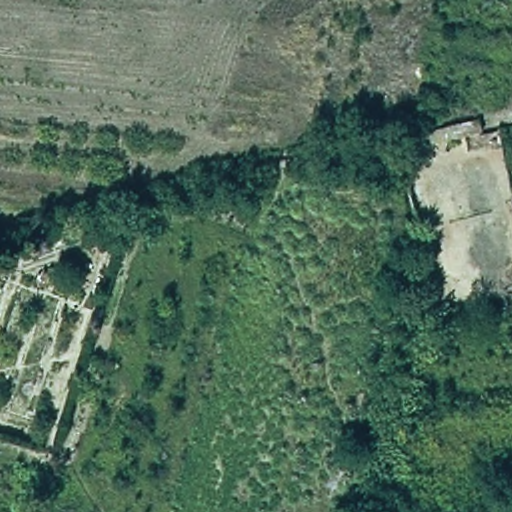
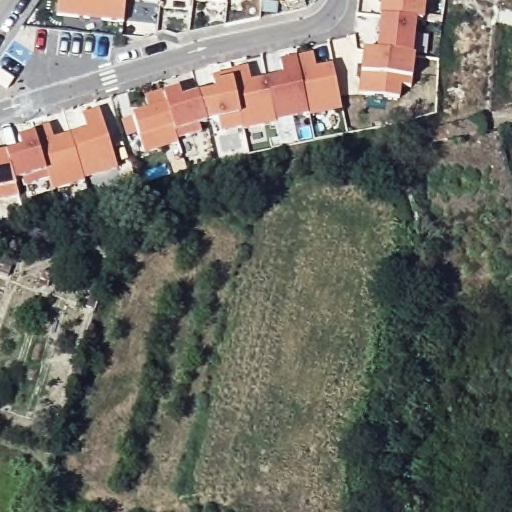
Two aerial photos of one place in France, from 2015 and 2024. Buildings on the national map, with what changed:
new [(58,0),(62,0),(75,1),(76,0),(125,0),(123,23),(56,15),(58,0)]
new [(135,0),(159,0),(159,3),(135,0)]
new [(193,0),(226,0),(226,4),(193,1),(193,0)]
new [(381,18),(383,1),(373,0),(424,0),(422,23),(416,22),(381,18)]
new [(416,22),(412,56),(377,53),(381,18),(416,22)]
new [(377,53),(412,56),(414,57),(411,88),(401,86),(399,99),(359,94),(364,51),(377,53)]
new [(341,109),(308,116),(308,114),(296,58),(313,55),(316,69),(332,66),(341,109)]
new [(275,121),(266,80),(283,76),(279,61),(296,58),(308,114),(275,121)]
new [(247,69),(250,83),(266,80),(275,121),(276,124),(243,130),(242,128),(231,74),(231,72),(247,69)]
new [(219,132),(217,119),(206,121),(198,96),(214,93),(211,78),(231,74),(242,128),(219,132)]
new [(206,123),(198,125),(201,132),(176,139),(163,96),(179,91),(182,101),(198,96),(206,121),(206,123)]
new [(143,154),(132,119),(146,114),(148,109),(145,99),(162,94),(163,96),(176,139),(177,143),(143,154)]
new [(86,130),(82,116),(98,111),(116,169),(83,179),(69,135),(86,130)]
new [(49,126),(53,140),(69,135),(83,179),(84,182),(52,192),(48,179),(34,135),(33,131),(49,126)]
new [(23,187),(21,180),(14,183),(5,155),(21,150),(18,140),(34,135),(48,179),(23,187)]
new [(0,156),(5,155),(14,183),(18,197),(0,201),(0,156)]

